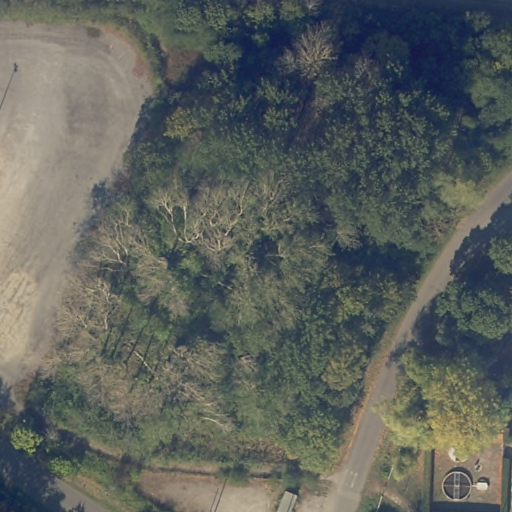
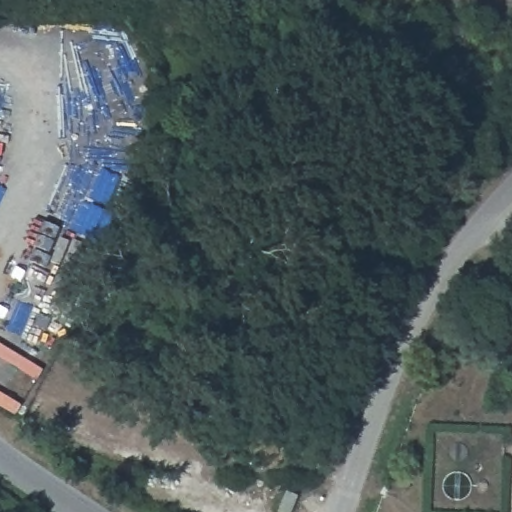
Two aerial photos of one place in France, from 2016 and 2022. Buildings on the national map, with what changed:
unchanged [(285,489),(296,494),(288,512),(282,512),(276,510),(285,489)]

